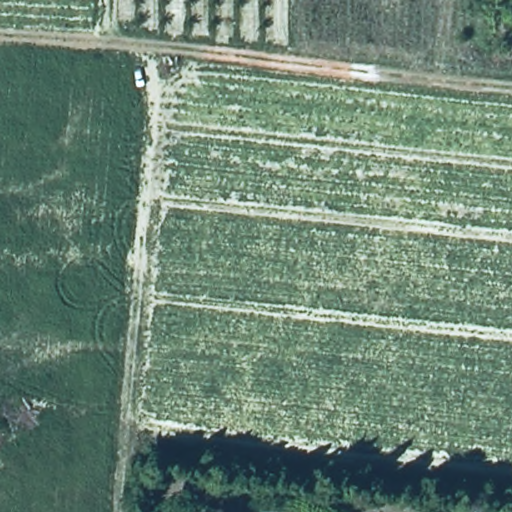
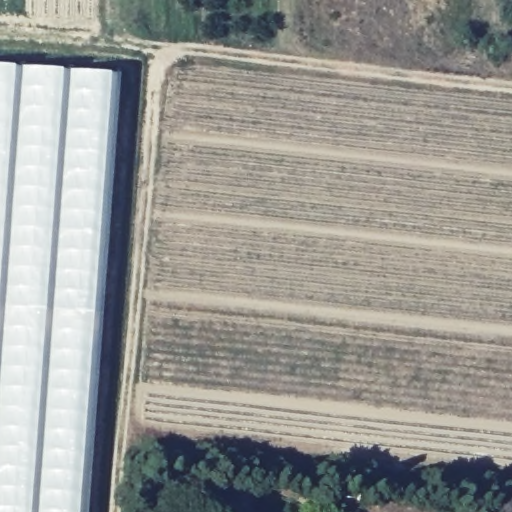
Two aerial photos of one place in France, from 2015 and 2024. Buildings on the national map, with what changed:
new [(88,512),(0,512),(0,66),(118,74),(88,512)]

